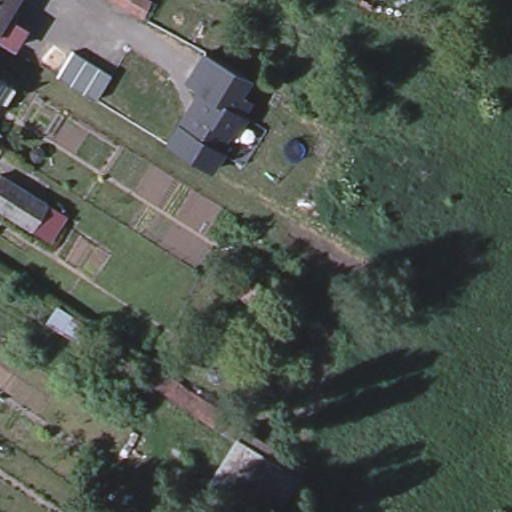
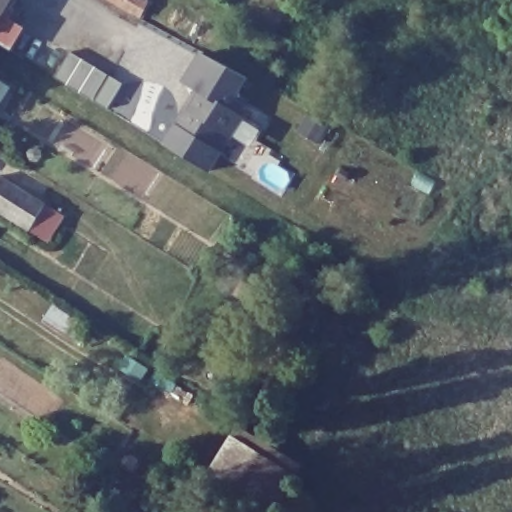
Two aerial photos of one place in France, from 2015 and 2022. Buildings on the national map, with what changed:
unchanged [(9,0),(5,6),(27,19),(15,39),(0,29),(0,0),(9,0)]
unchanged [(140,16),(137,15),(112,0),(149,0),(150,1),(140,16)]
unchanged [(72,51),(107,74),(110,75),(100,91),(93,101),(55,77),(72,51)]
unchanged [(192,89),(183,82),(200,53),(248,80),(241,94),(250,101),(212,173),(162,144),(192,89)]
unchanged [(6,70),(0,79),(0,66),(6,70)]
unchanged [(3,138),(0,143),(0,135),(3,138)]
unchanged [(3,183),(10,187),(52,212),(37,237),(0,216),(0,188),(3,183)]
unchanged [(237,433),(300,477),(274,512),(261,512),(205,480),(237,433)]

